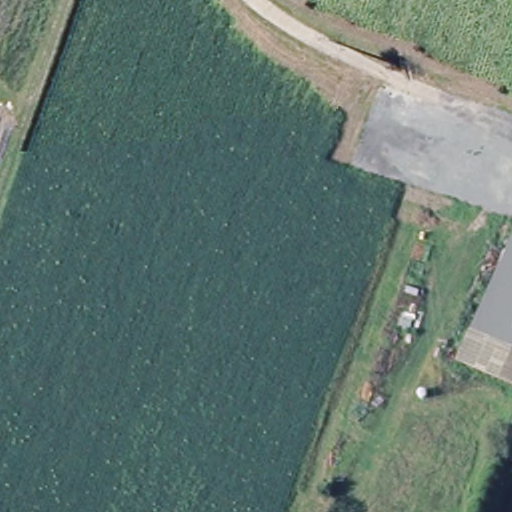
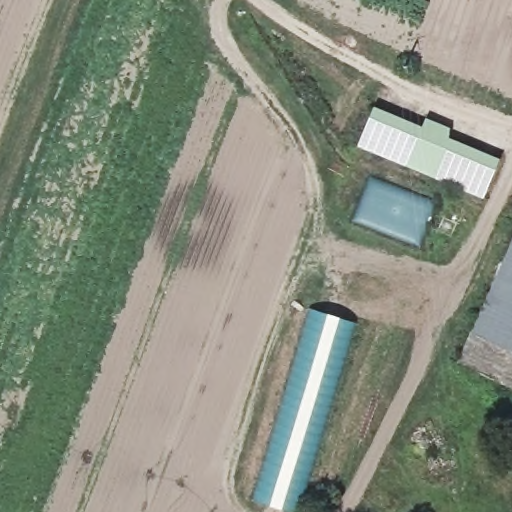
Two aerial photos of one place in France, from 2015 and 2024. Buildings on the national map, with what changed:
new [(357,146),(374,106),(421,126),(425,120),(451,130),(448,137),(498,159),(483,198),(357,146)]
unchanged [(512,231),(512,291),(491,340),(466,327),(512,231)]
unchanged [(512,349),(491,340),(512,291),(512,349)]
new [(340,319),(336,326),(350,330),(341,359),(345,360),(298,512),(291,512),(255,500),(276,428),(290,411),(283,410),(312,309),(319,311),(340,319)]
unchanged [(512,349),(512,391),(450,362),(466,327),(491,340),(512,349)]
unchanged [(512,443),(512,466),(503,462),(512,443)]

